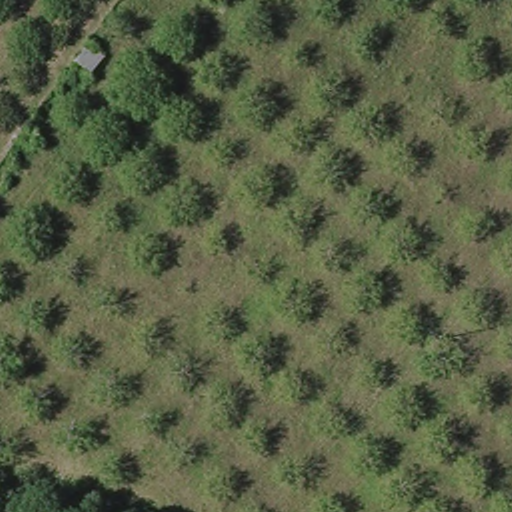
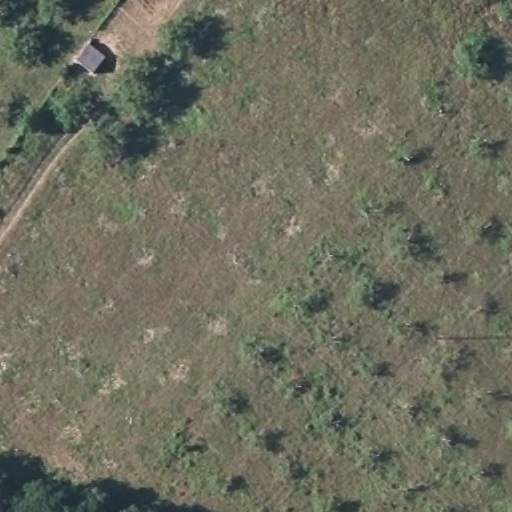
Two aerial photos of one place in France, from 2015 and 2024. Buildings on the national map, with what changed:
unchanged [(106,58),(95,73),(79,60),(91,45),(106,58)]

